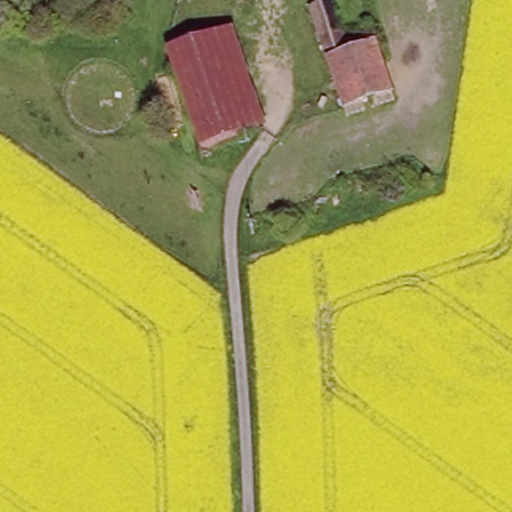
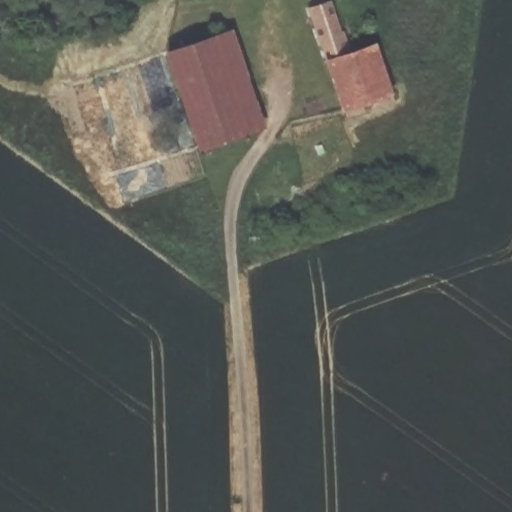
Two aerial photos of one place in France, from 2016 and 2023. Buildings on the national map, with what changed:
unchanged [(376,45),(394,97),(377,104),(374,96),(361,99),(363,109),(347,114),(309,3),(318,0),(332,0),(341,27),(346,26),(354,52),(376,45)]
unchanged [(234,31),(266,127),(201,147),(169,50),(234,31)]

